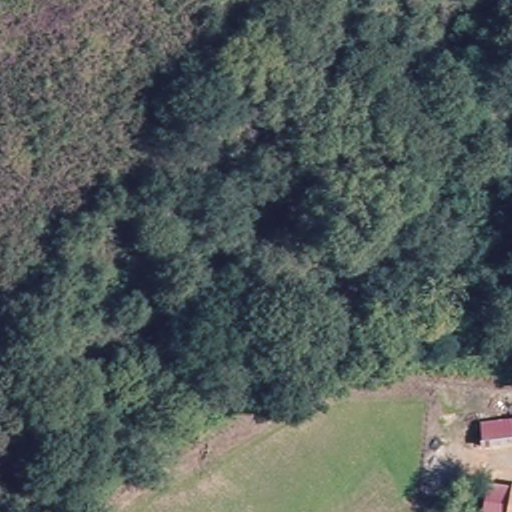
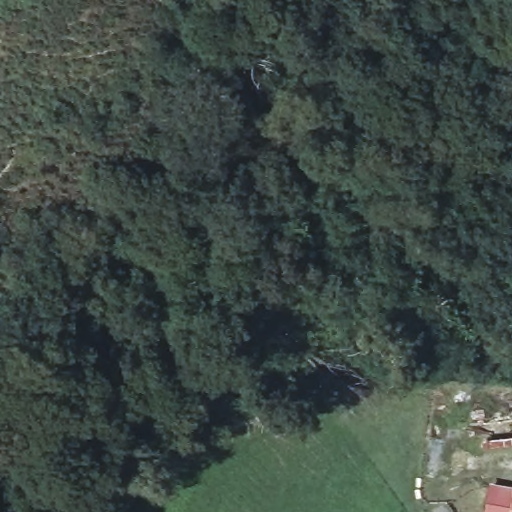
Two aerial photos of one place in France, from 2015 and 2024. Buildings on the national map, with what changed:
unchanged [(512,512),(510,512),(512,491),(512,512)]

